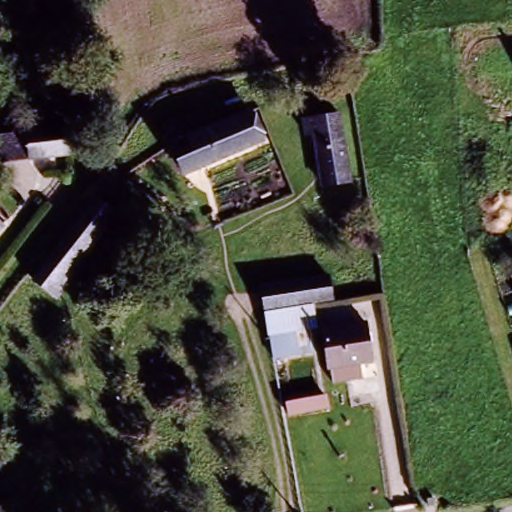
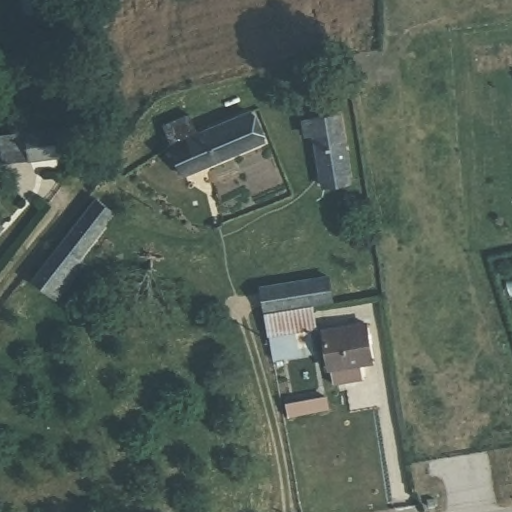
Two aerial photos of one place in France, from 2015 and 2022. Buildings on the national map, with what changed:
unchanged [(23,0),(47,0),(49,8),(26,14),(23,0)]
unchanged [(311,186),(305,136),(302,121),(327,117),(329,131),(336,182),(311,186)]
unchanged [(172,149),(165,132),(189,123),(196,140),(245,119),(256,147),(193,172),(182,176),(172,149)]
unchanged [(1,135),(25,130),(71,123),(71,133),(72,148),(29,155),(5,160),(1,135)]
unchanged [(28,277),(93,193),(120,217),(61,301),(28,277)]
unchanged [(0,227),(0,221),(3,224),(0,227)]
unchanged [(329,275),(334,303),(312,305),(316,330),(309,330),(311,353),(273,360),(258,285),(329,275)]
unchanged [(375,365),(361,367),(362,378),(332,383),(320,327),(367,321),(375,365)]

